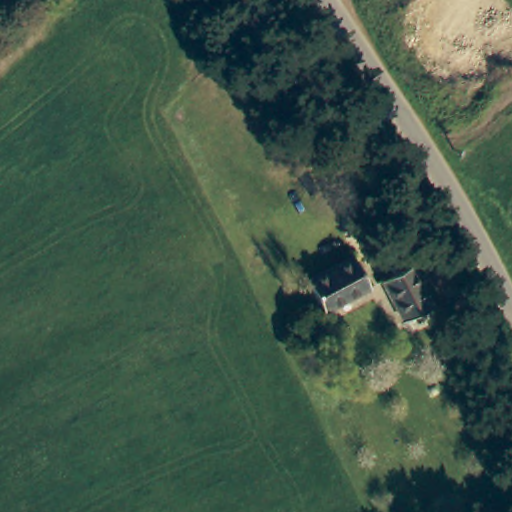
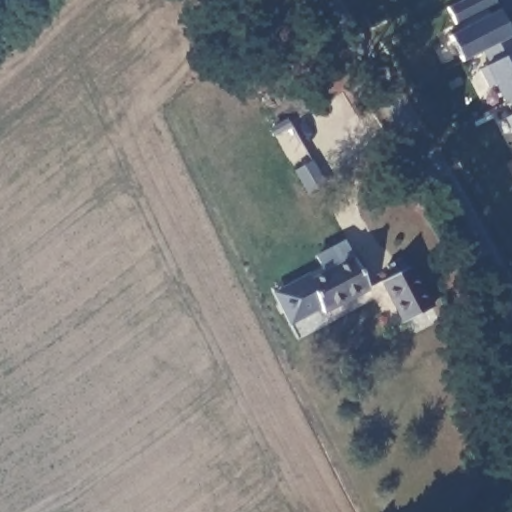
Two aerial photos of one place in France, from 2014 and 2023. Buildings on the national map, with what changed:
new [(481,51),(462,60),(448,35),(460,29),(449,6),(461,0),(494,0),(500,9),(512,32),(512,115),(481,51)]
new [(321,267),(313,254),(344,238),(373,288),(325,313),(321,304),(291,323),(273,291),(321,267)]
demolished [(354,256),(370,289),(324,313),(308,281),(354,256)]
unchanged [(434,305),(404,321),(383,282),(412,265),(434,305)]

